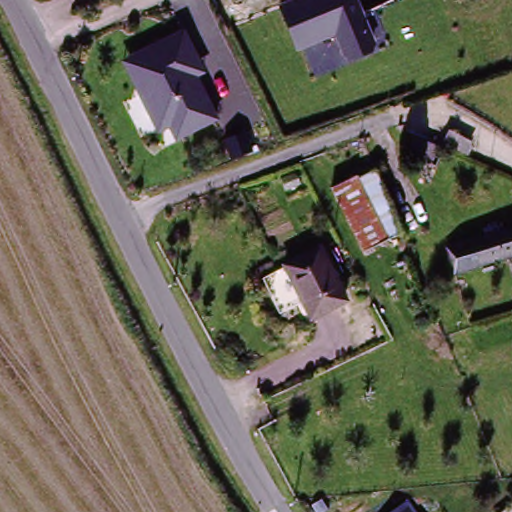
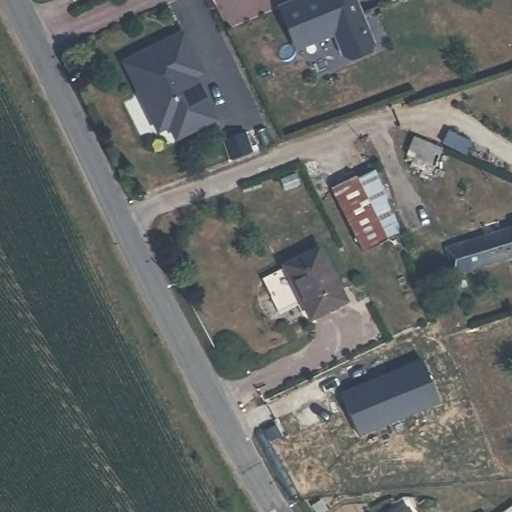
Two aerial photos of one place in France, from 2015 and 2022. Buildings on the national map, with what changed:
unchanged [(376,49),(345,61),(335,35),(295,51),(277,7),(293,0),(355,0),(376,49)]
unchanged [(205,74),(198,77),(219,120),(174,142),(167,129),(157,134),(120,59),(182,29),(205,74)]
unchanged [(469,145),(463,160),(441,150),(448,135),(469,145)]
unchanged [(432,169),(404,157),(412,137),(441,150),(432,169)]
unchanged [(354,180),(386,244),(361,255),(328,192),(354,180)]
unchanged [(482,241),(478,229),(497,224),(501,236),(512,232),(512,259),(452,277),(445,252),(482,241)]
unchanged [(318,252),(343,303),(307,322),(282,270),(318,252)]
new [(422,362),(438,400),(361,433),(343,393),(422,362)]
unchanged [(412,512),(401,512),(408,507),(412,512)]

